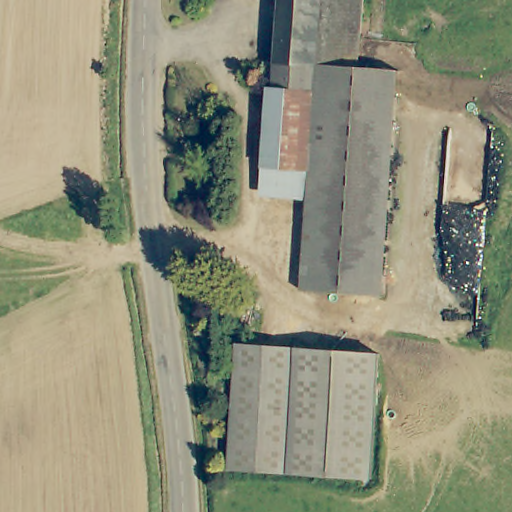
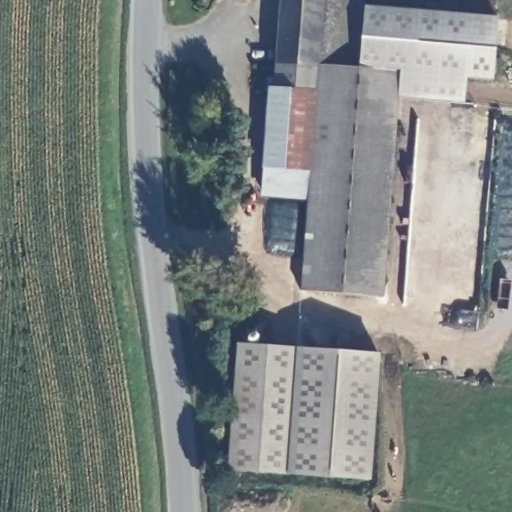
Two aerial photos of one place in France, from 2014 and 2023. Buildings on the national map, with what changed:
unchanged [(318,63),(316,93),(272,91),(278,0),(350,0),(350,65),(318,63)]
new [(362,6),(358,65),(350,65),(350,0),(363,0),(362,6)]
new [(493,81),(466,79),(464,102),(399,96),(402,68),(358,65),(362,6),(497,18),(493,81)]
unchanged [(382,294),(299,286),(306,206),(307,193),(315,101),(316,93),(318,63),(350,65),(402,68),(392,178),(382,294)]
unchanged [(307,193),(261,188),(267,109),(268,91),(272,91),(316,93),(315,101),(307,193)]
unchanged [(236,344),(377,356),(366,482),(225,469),(236,344)]

